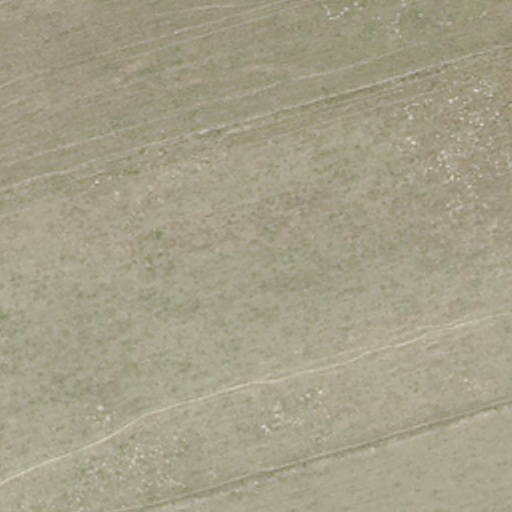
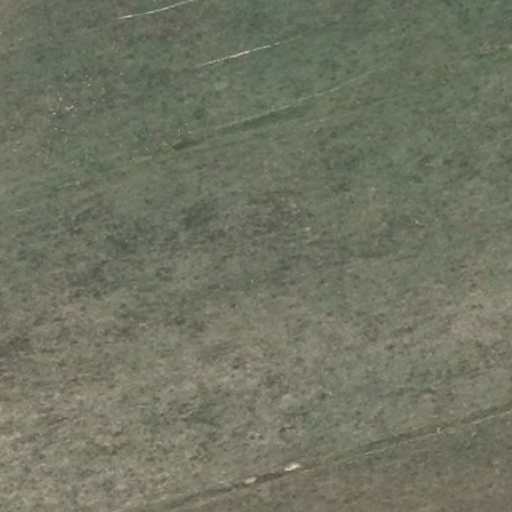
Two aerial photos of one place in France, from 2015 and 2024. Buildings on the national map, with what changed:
[]

